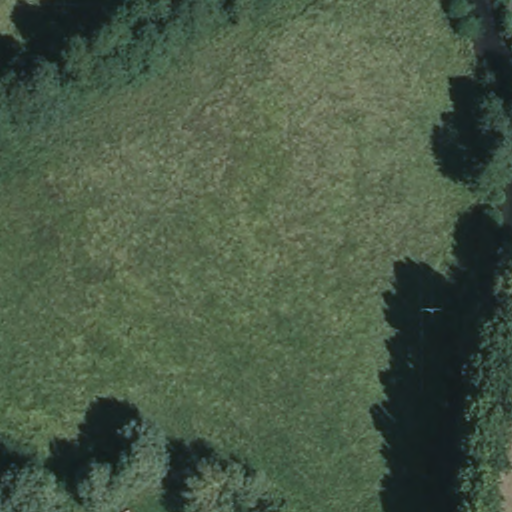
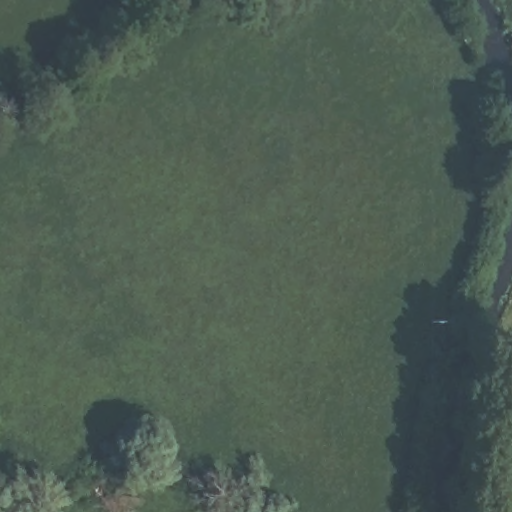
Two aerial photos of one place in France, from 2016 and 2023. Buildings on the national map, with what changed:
[]

